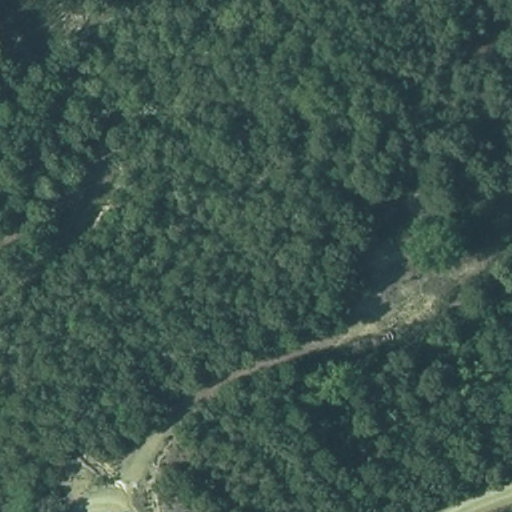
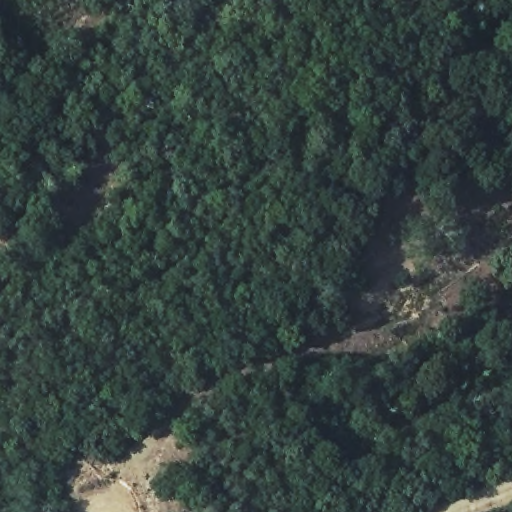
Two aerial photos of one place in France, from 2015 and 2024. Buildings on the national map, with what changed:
unchanged [(120,143),(112,190),(95,187),(103,140),(120,143)]

